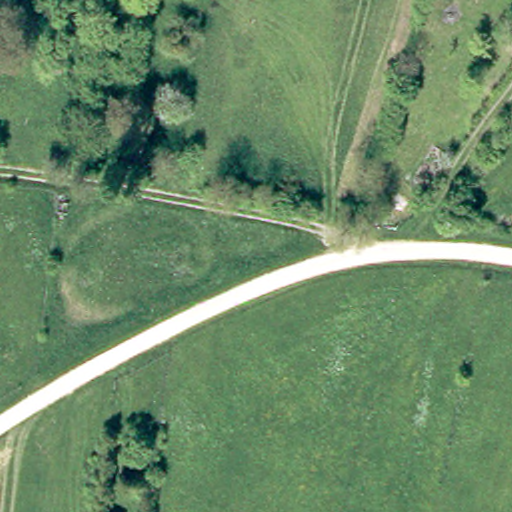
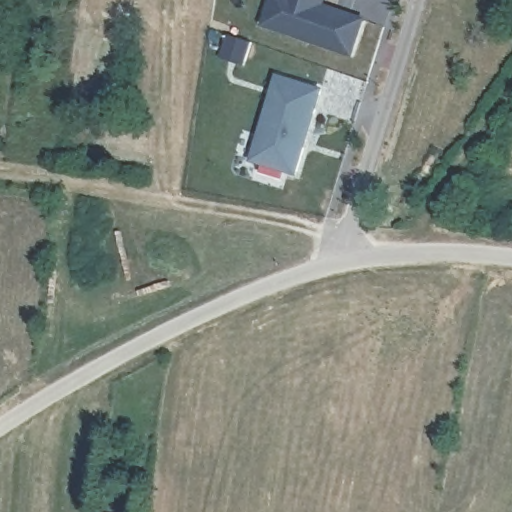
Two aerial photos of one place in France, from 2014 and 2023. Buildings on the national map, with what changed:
new [(365,19),(353,57),(262,27),(271,0),(327,0),(325,7),(365,19)]
new [(324,88),(297,175),(250,164),(276,75),(324,88)]

